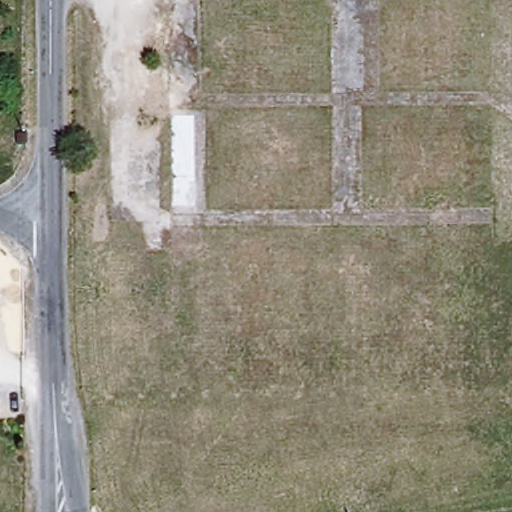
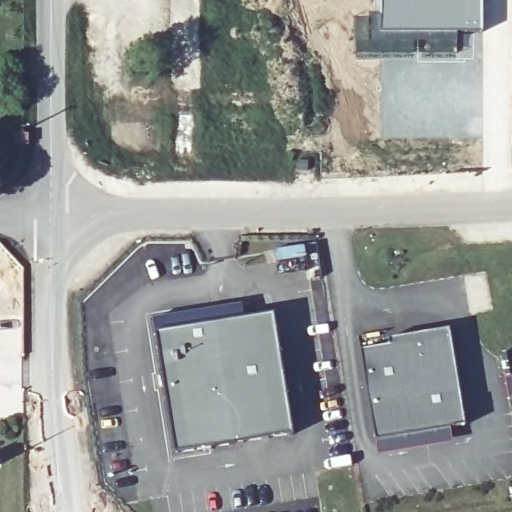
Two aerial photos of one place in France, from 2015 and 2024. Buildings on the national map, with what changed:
new [(484,0),(484,32),(379,34),(379,0),(484,0)]
new [(296,432),(175,448),(159,326),(160,326),(158,313),(248,301),(250,314),(280,310),(296,432)]
new [(467,428),(377,440),(365,349),(394,345),(393,339),(454,331),(467,428)]

